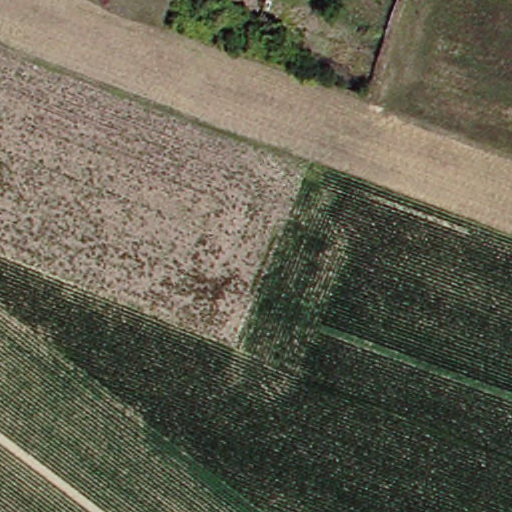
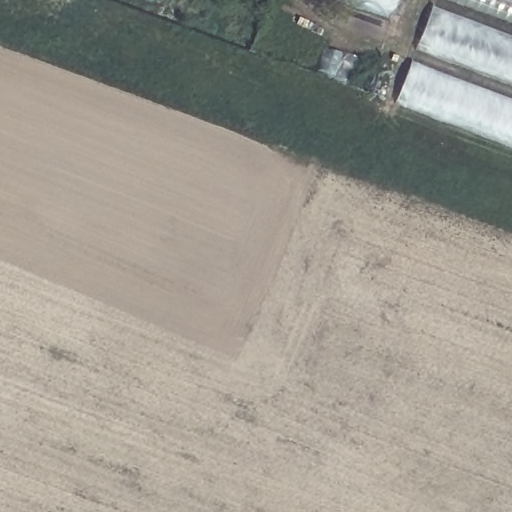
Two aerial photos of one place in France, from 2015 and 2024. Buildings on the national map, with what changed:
new [(386,19),(331,0),(393,0),(386,19)]
new [(442,0),(512,0),(512,26),(442,0)]
new [(411,50),(428,6),(512,38),(512,87),(411,50)]
new [(512,101),(512,147),(395,102),(411,62),(512,101)]

